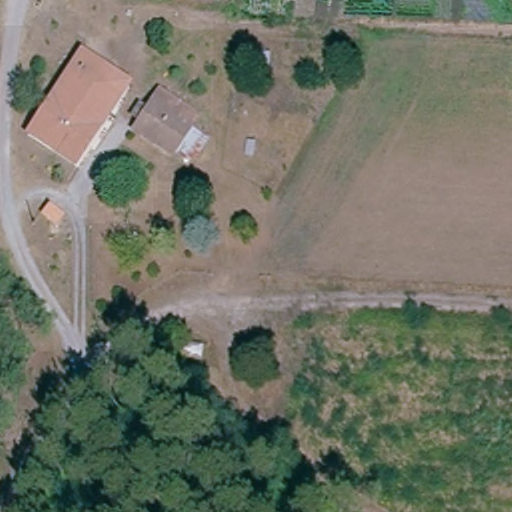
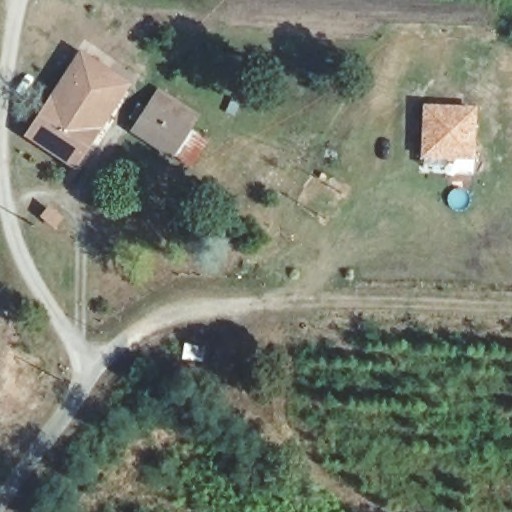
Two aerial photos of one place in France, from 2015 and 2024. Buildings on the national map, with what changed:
unchanged [(78,53),(100,67),(91,81),(116,96),(73,165),(27,136),(78,53)]
unchanged [(158,92),(194,115),(165,152),(132,130),(158,92)]
new [(420,102),(476,106),(474,160),(418,158),(420,102)]

